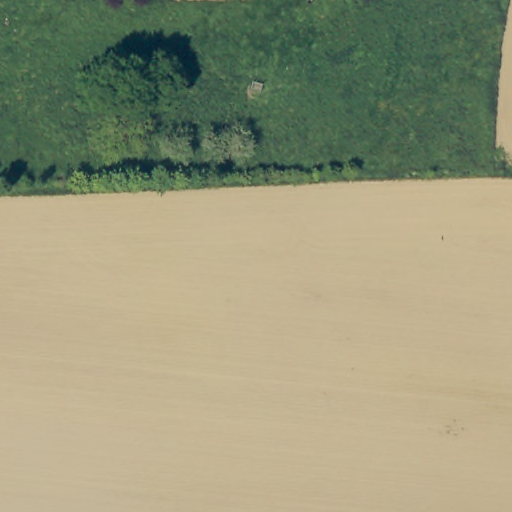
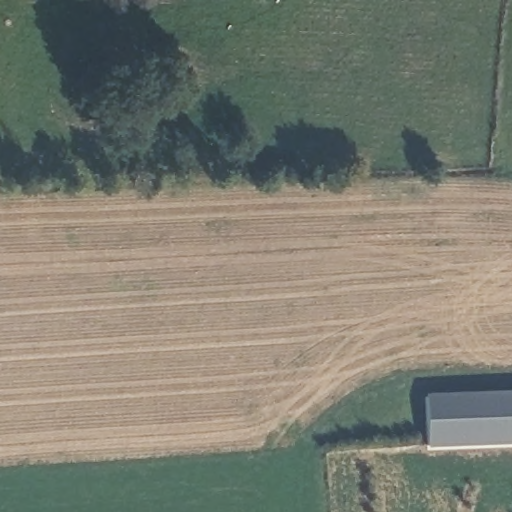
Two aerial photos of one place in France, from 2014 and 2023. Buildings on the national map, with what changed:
new [(426,450),(426,396),(512,392),(512,447),(426,450)]

